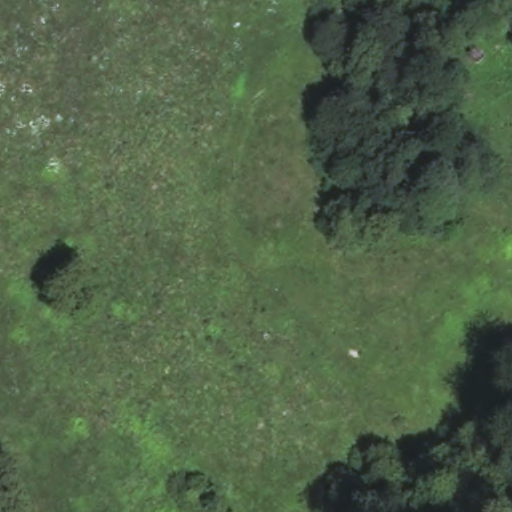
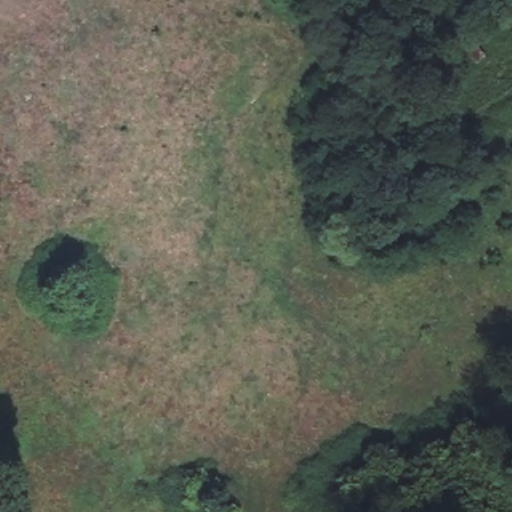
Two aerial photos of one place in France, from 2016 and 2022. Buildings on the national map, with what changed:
[]

